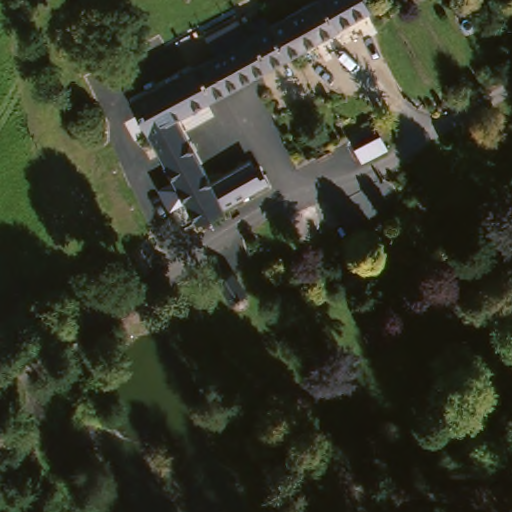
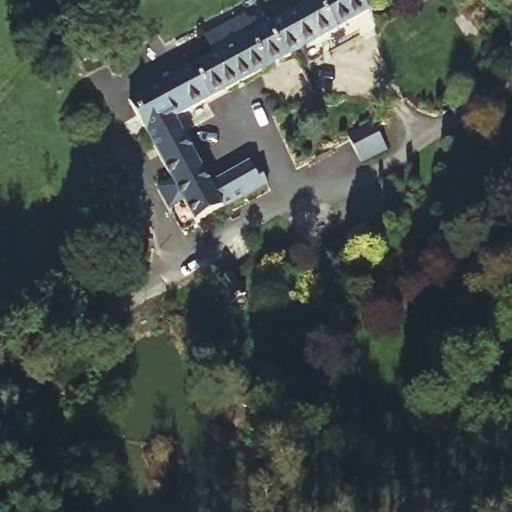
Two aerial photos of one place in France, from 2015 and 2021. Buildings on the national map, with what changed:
unchanged [(287,60),(265,27),(315,0),(322,0),(338,31),(287,60)]
unchanged [(338,31),(322,0),(368,0),(371,5),(370,14),(338,31)]
unchanged [(242,86),(220,52),(248,36),(265,27),(287,60),(267,71),(259,76),(242,86)]
unchanged [(207,105),(186,70),(220,52),(242,86),(207,105)]
unchanged [(186,70),(207,105),(176,123),(200,165),(170,181),(126,103),(132,100),(186,70)]
unchanged [(388,146),(359,161),(347,139),(375,123),(388,146)]
unchanged [(217,194),(237,183),(261,170),(272,188),(249,202),(220,218),(198,230),(170,181),(200,165),(217,194)]
unchanged [(240,293),(238,296),(242,300),(242,303),(237,306),(233,305),(230,301),(225,303),(213,285),(230,275),(240,293)]

